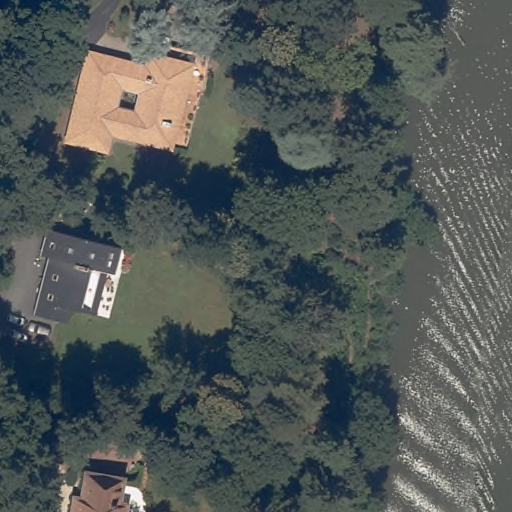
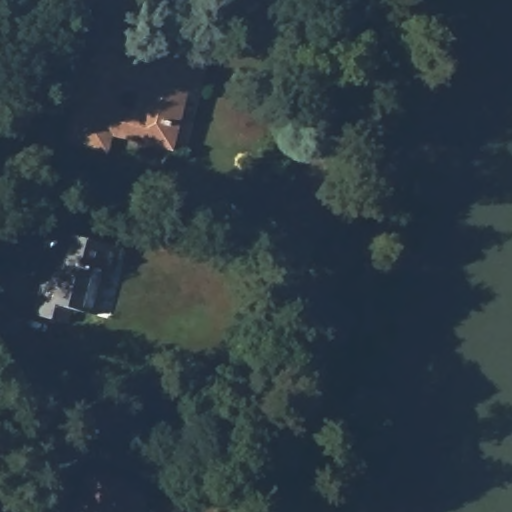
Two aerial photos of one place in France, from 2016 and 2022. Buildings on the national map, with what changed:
unchanged [(93,56),(150,70),(154,59),(190,67),(175,128),(161,124),(155,144),(113,133),(108,149),(71,140),(93,56)]
unchanged [(55,327),(36,322),(51,267),(43,264),(49,239),(124,258),(117,282),(109,280),(98,323),(73,317),(69,331),(55,327)]
unchanged [(75,500),(83,502),(87,476),(125,482),(121,507),(129,508),(128,512),(73,512),(75,500)]

